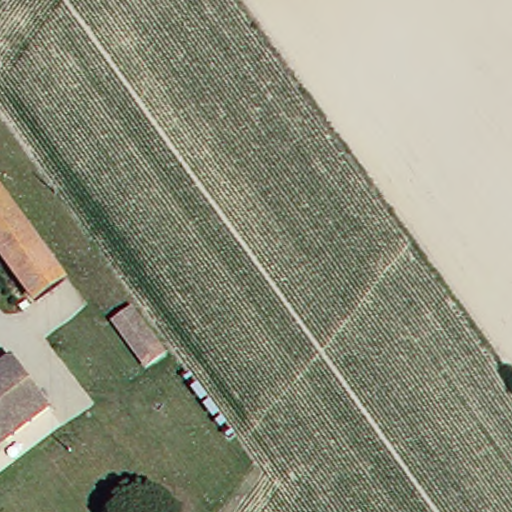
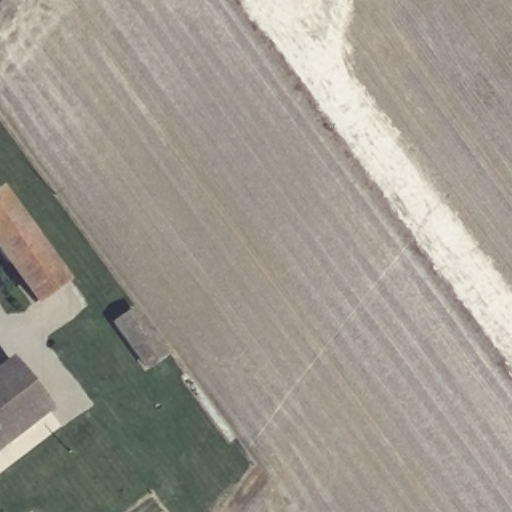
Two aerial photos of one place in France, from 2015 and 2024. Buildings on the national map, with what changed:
unchanged [(0,241),(0,187),(2,185),(69,277),(41,297),(0,241)]
unchanged [(115,319),(132,306),(164,348),(147,361),(115,319)]
unchanged [(0,445),(0,363),(13,353),(52,405),(0,445)]

